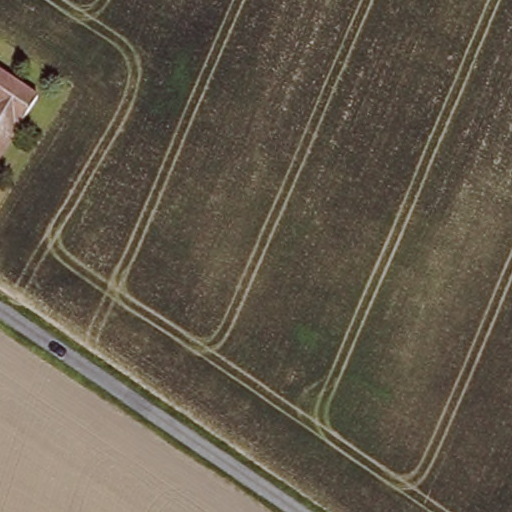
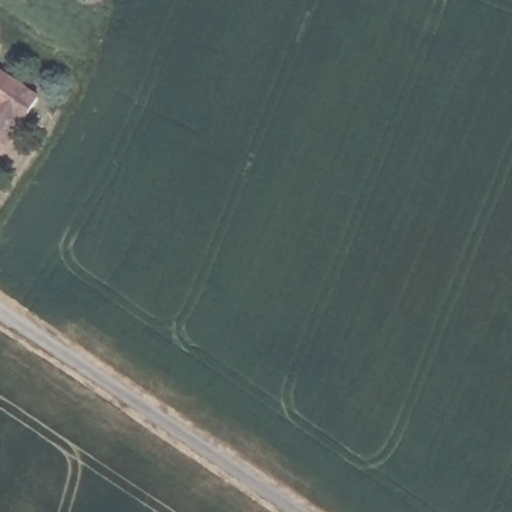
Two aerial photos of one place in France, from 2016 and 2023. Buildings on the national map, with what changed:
unchanged [(49,102),(0,177),(0,70),(49,102)]

